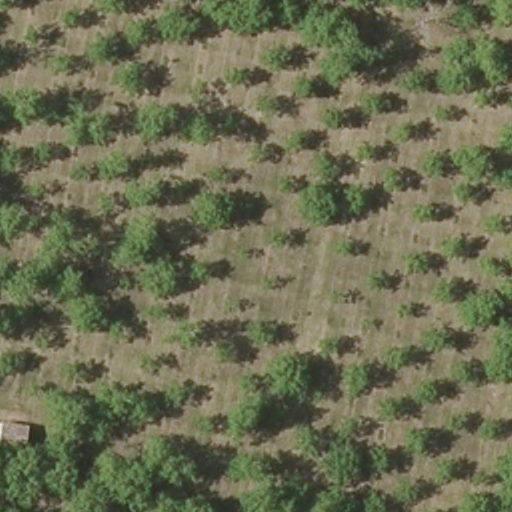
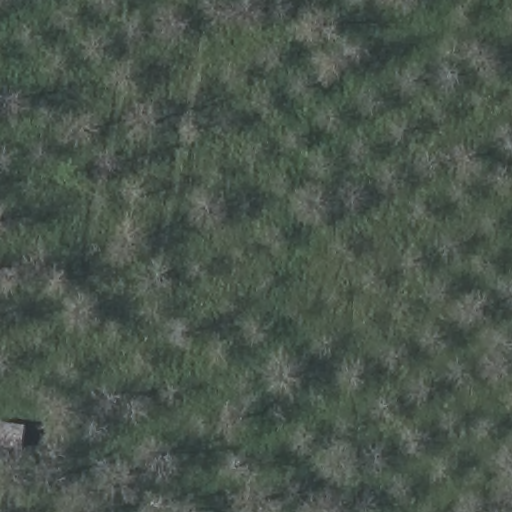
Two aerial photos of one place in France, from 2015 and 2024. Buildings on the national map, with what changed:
unchanged [(25,448),(0,445),(1,424),(29,427),(25,448)]

